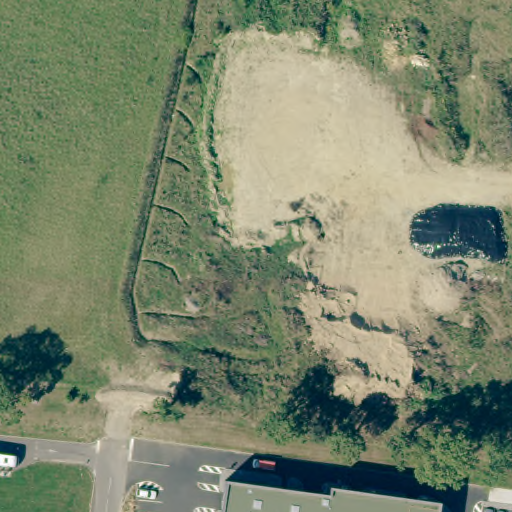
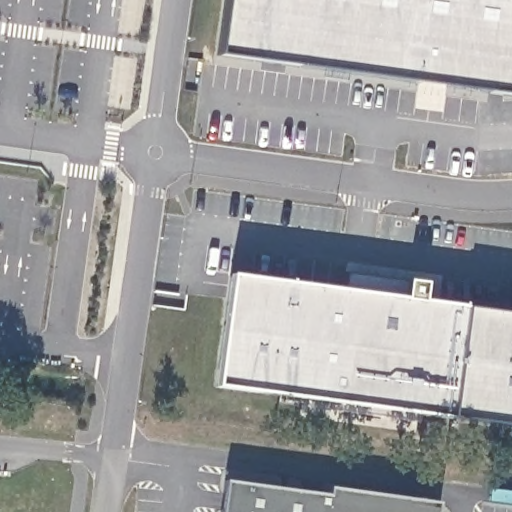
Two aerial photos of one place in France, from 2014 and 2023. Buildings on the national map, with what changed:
new [(220,56),(227,0),(512,0),(512,95),(220,56)]
new [(451,420),(217,387),(231,276),(405,300),(408,280),(425,282),(422,302),(467,309),(512,315),(512,428),(451,420)]
unchanged [(329,496),(330,489),(437,504),(436,512),(222,512),(226,482),(329,496)]

